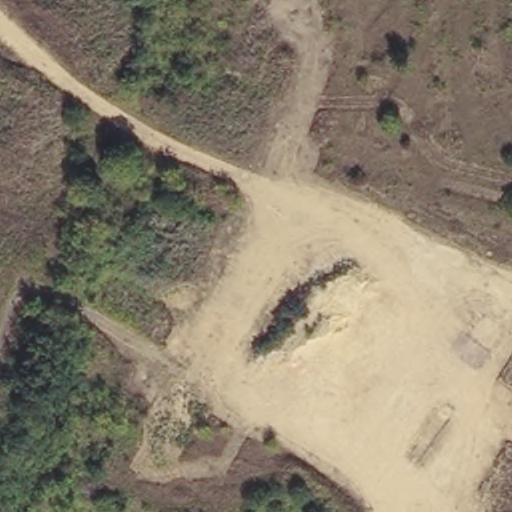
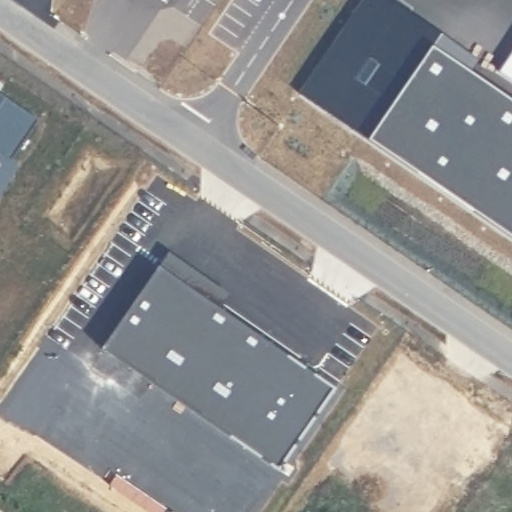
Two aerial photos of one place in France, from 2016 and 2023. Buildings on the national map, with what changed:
new [(163,0),(167,0),(165,2),(163,0)]
new [(361,0),(390,0),(440,35),(367,142),(299,90),(361,0)]
new [(487,65),(478,76),(512,99),(512,237),(367,142),(440,35),(487,65)]
new [(512,81),(499,73),(512,54),(512,81)]
new [(42,122),(0,185),(0,94),(42,122)]
new [(168,251),(230,293),(219,310),(333,390),(277,479),(100,353),(168,251)]

